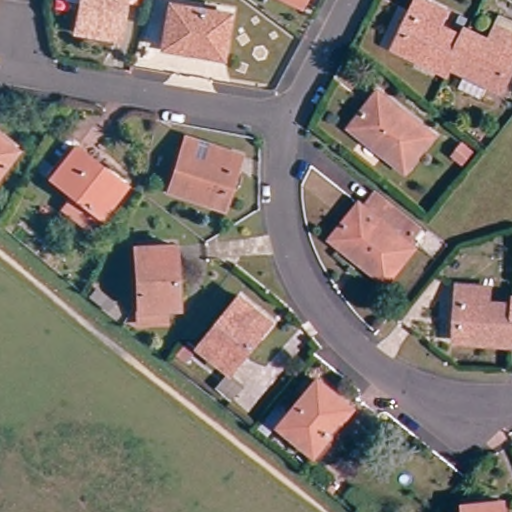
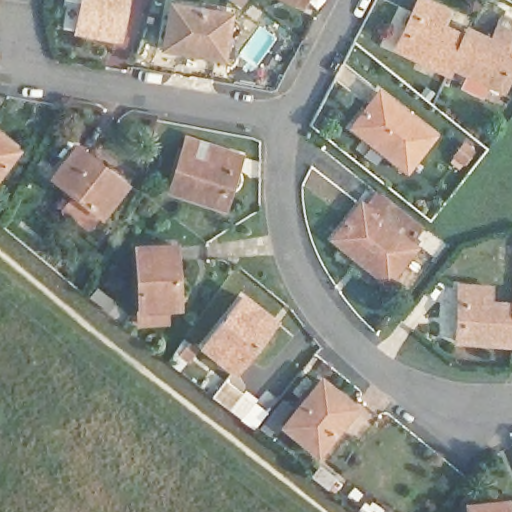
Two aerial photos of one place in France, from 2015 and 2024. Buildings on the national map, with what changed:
unchanged [(116,44),(80,40),(85,8),(71,7),(72,0),(122,0),(116,44)]
unchanged [(293,0),(299,0),(298,2),(293,0)]
unchanged [(417,0),(419,0),(436,9),(429,22),(460,36),(445,67),(442,73),(391,47),(417,0)]
unchanged [(161,44),(167,4),(223,12),(217,52),(161,44)]
unchanged [(461,74),(445,67),(460,36),(464,30),(493,44),(500,31),(512,38),(512,59),(510,62),(500,82),(495,92),(483,86),(475,99),(453,88),(461,74)]
unchanged [(432,133),(405,167),(353,125),(380,91),(432,133)]
unchanged [(219,209),(165,191),(183,137),(237,155),(232,171),(225,190),(219,209)]
unchanged [(0,153),(0,140),(6,145),(0,153)]
unchanged [(96,214),(49,177),(73,144),(101,164),(95,172),(115,188),(96,214)]
unchanged [(360,204),(364,207),(374,194),(423,234),(385,280),(333,237),(360,204)]
unchanged [(177,309),(168,310),(167,328),(134,331),(131,310),(128,241),(173,240),(177,309)]
unchanged [(254,342),(232,369),(200,343),(239,294),(266,316),(249,337),(254,342)]
unchanged [(511,339),(511,346),(455,340),(457,301),(512,305),(512,330),(511,338),(511,339)]
unchanged [(511,338),(512,330),(512,339),(511,339),(511,338)]
unchanged [(283,419),(319,377),(350,403),(314,446),(283,419)]
unchanged [(498,497),(499,512),(466,512),(465,498),(498,497)]

